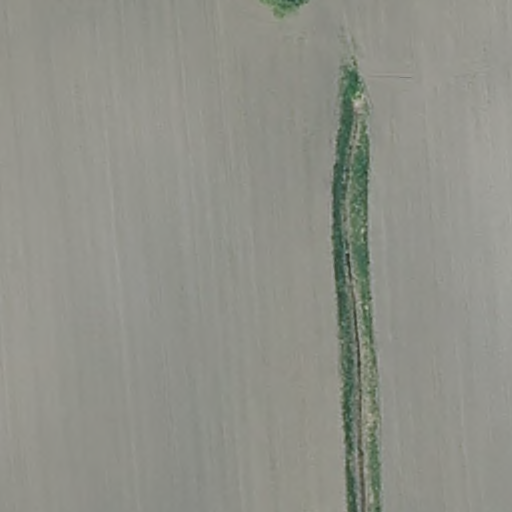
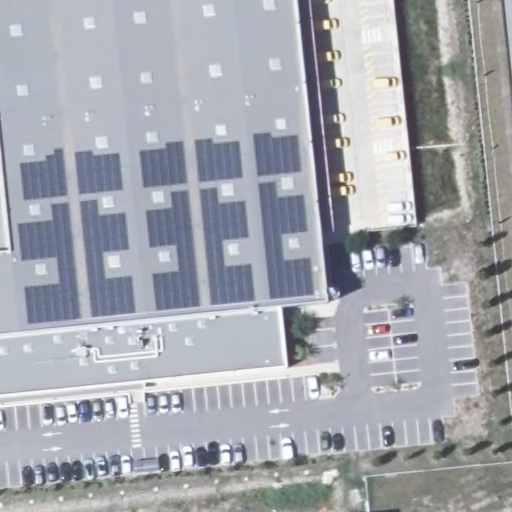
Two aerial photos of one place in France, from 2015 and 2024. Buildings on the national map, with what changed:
new [(280,309),(285,368),(0,397),(0,255),(7,255),(0,189),(0,0),(295,0),(325,304),(280,309)]
new [(512,0),(512,44),(508,0),(512,0)]

